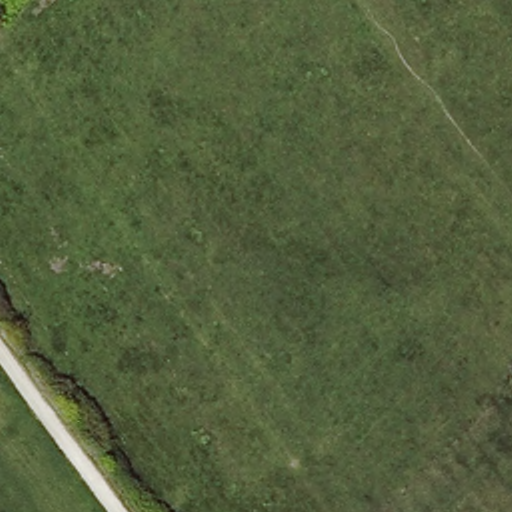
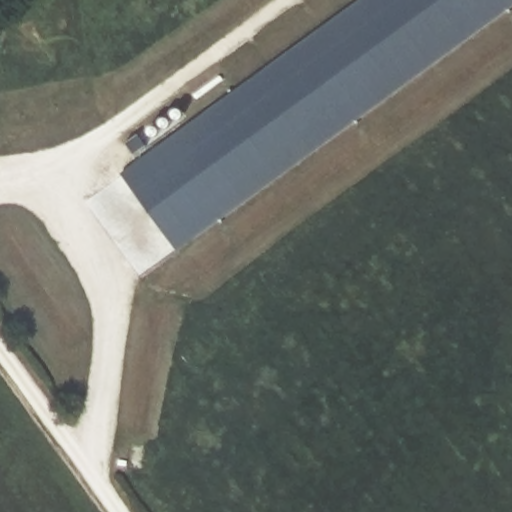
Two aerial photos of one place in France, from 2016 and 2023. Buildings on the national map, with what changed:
new [(120,174),(359,0),(512,0),(512,5),(176,251),(120,174)]

